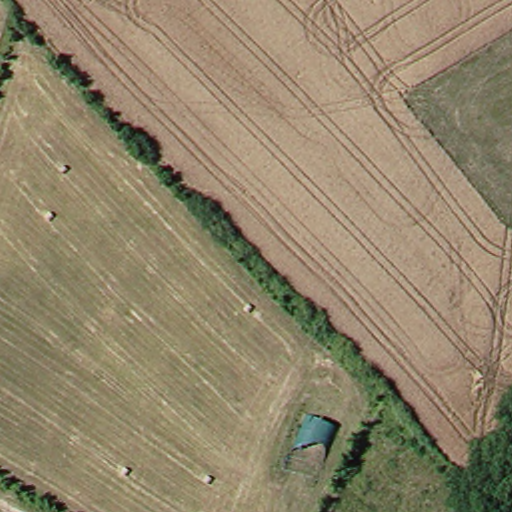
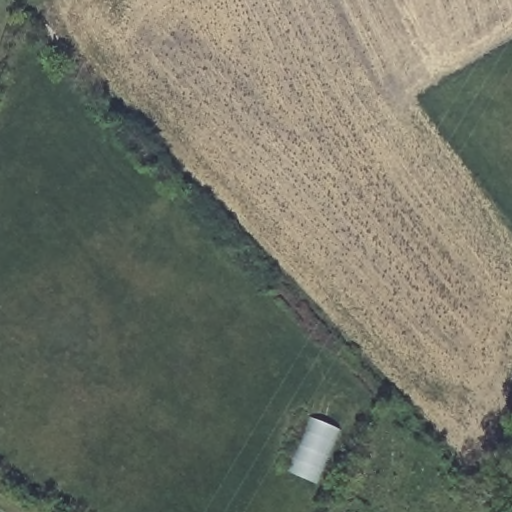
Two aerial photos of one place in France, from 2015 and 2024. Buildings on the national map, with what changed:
new [(310,418),(338,431),(315,483),(289,472),(310,418)]

